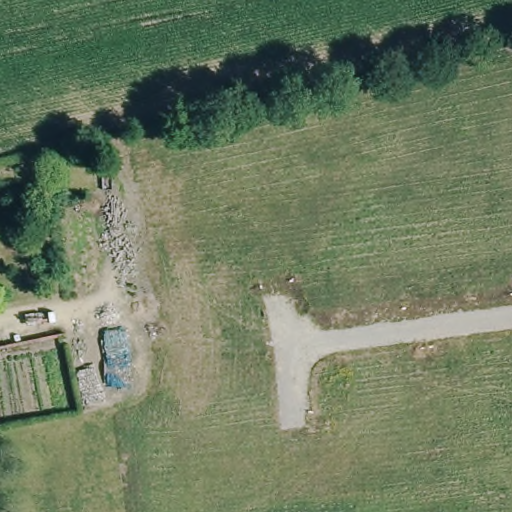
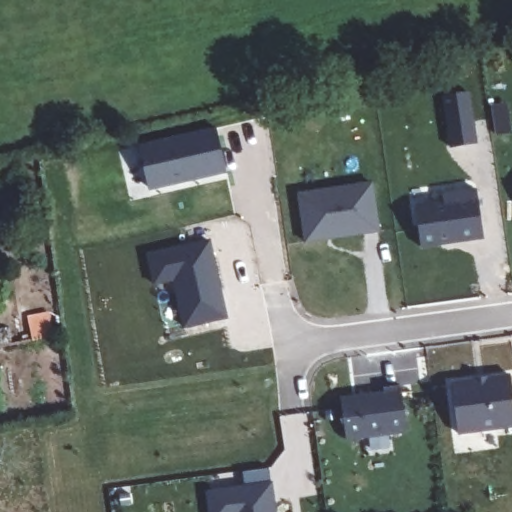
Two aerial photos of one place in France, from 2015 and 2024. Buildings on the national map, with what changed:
new [(474,89),(482,141),(457,145),(449,92),(474,89)]
new [(226,174),(149,190),(139,145),(215,128),(226,174)]
new [(304,190),(377,180),(384,227),(311,238),(304,190)]
new [(483,194),(489,235),(454,240),(454,237),(444,239),(444,241),(426,244),(420,202),(483,194)]
new [(228,317),(186,327),(175,280),(156,283),(150,254),(211,241),(228,317)]
new [(512,382),(512,427),(458,435),(451,381),(511,373),(512,382)]
new [(407,431),(347,440),(341,396),(384,391),(384,387),(400,385),(407,431)]
new [(275,480),(279,512),(214,512),(211,487),(275,480)]

